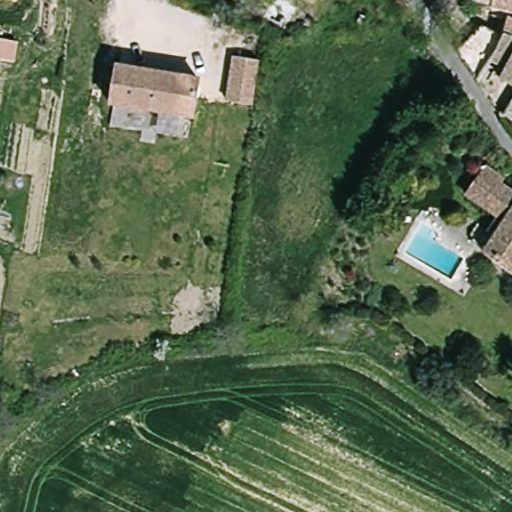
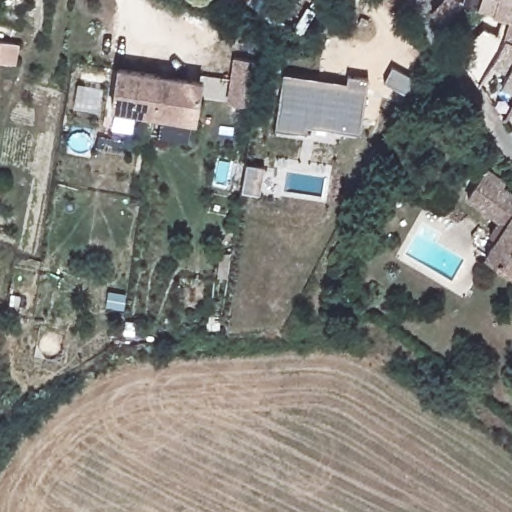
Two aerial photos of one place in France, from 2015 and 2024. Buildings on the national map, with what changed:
unchanged [(441,26),(431,10),(440,0),(464,0),(441,26)]
unchanged [(496,0),(512,0),(512,6),(496,0)]
unchanged [(488,14),(509,24),(488,62),(479,76),(460,48),(488,14)]
unchanged [(512,15),(512,26),(509,24),(512,15)]
unchanged [(496,100),(510,77),(488,62),(509,24),(512,26),(512,108),(507,115),(496,100)]
unchanged [(0,58),(0,37),(21,40),(19,60),(0,58)]
unchanged [(237,56),(264,60),(256,104),(230,100),(237,56)]
unchanged [(192,115),(112,106),(118,68),(199,79),(192,115)]
new [(359,134),(277,121),(284,71),(367,84),(359,134)]
unchanged [(512,187),(512,223),(470,193),(494,163),(512,177),(512,185),(512,186),(512,187)]
unchanged [(508,234),(512,226),(512,263),(498,253),(474,236),(486,220),(508,234)]

